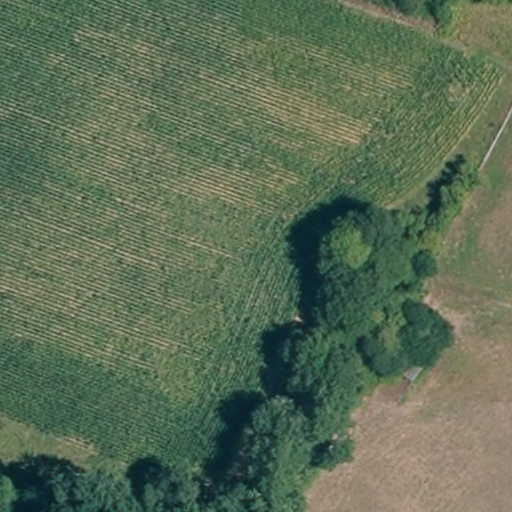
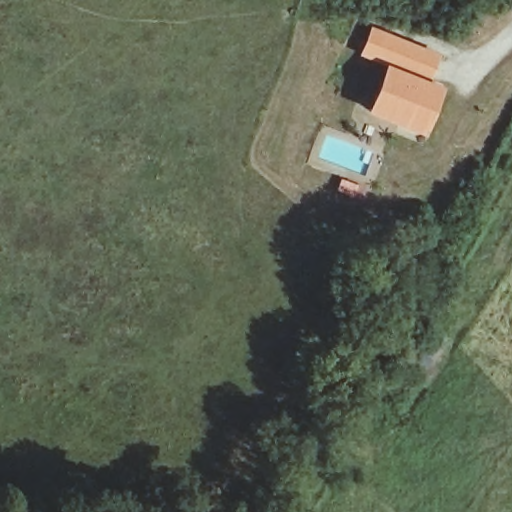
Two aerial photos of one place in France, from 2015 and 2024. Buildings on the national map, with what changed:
new [(423,135),(365,111),(382,66),(361,55),(371,27),(441,54),(430,81),(442,86),(423,135)]

